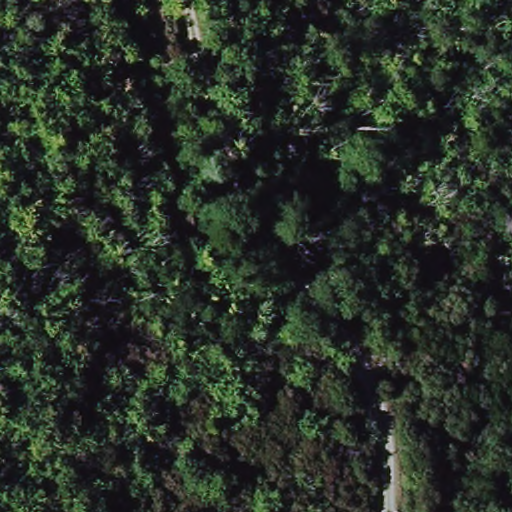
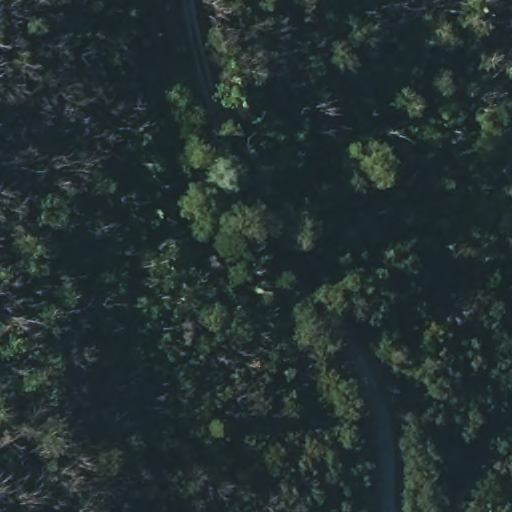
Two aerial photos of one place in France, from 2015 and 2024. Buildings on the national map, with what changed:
unchanged [(266,1),(265,0),(270,0),(266,1)]
unchanged [(101,60),(122,56),(130,74),(105,81),(101,60)]

